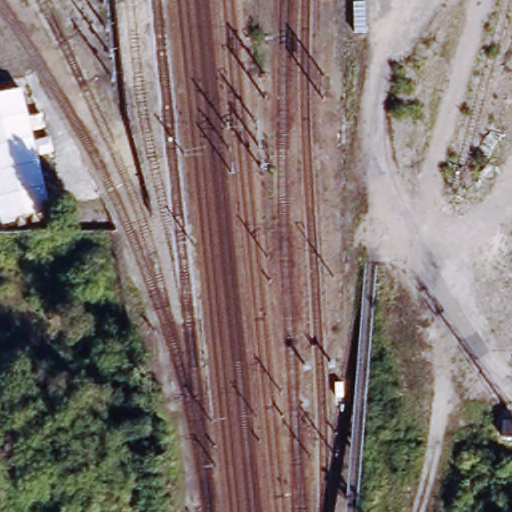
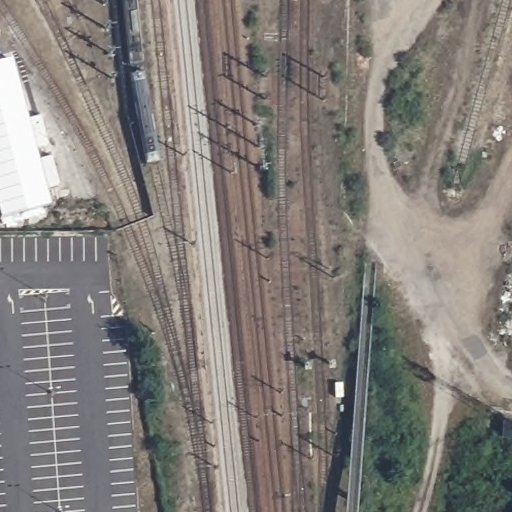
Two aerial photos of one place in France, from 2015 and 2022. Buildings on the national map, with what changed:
unchanged [(54,211),(0,223),(0,221),(0,95),(24,90),(54,211)]

